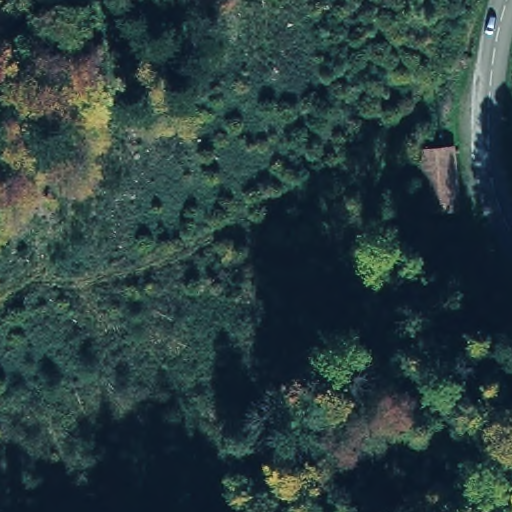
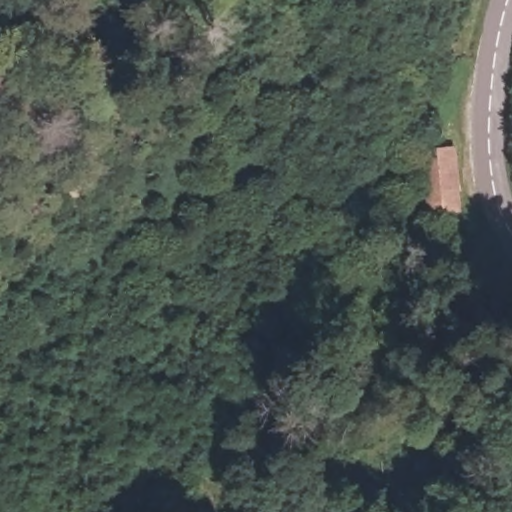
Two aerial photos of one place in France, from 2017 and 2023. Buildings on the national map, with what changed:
unchanged [(421,149),(453,145),(451,205),(418,210),(421,149)]

